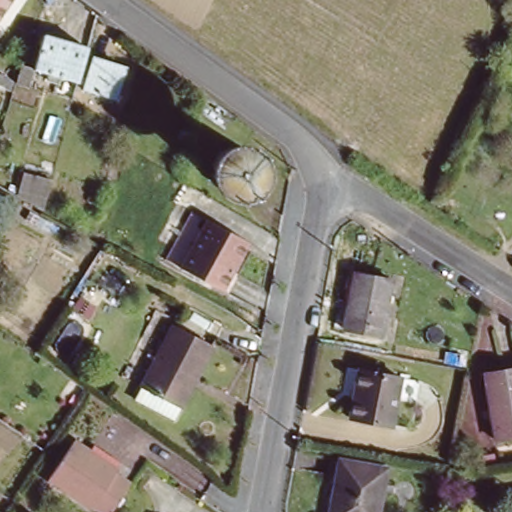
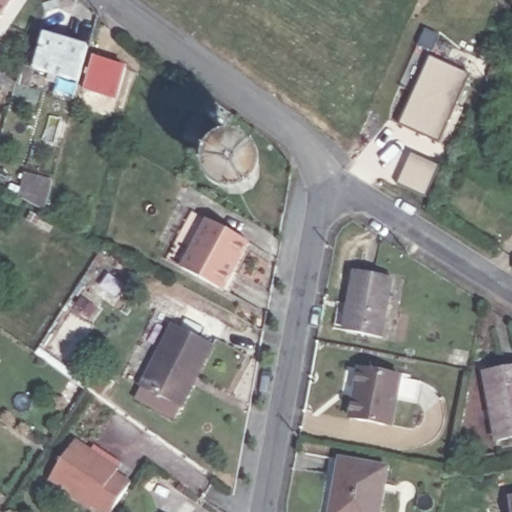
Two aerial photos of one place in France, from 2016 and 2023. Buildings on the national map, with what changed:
unchanged [(0,8),(0,0),(5,0),(0,8)]
unchanged [(41,36),(83,47),(74,79),(32,68),(41,36)]
unchanged [(89,54),(122,63),(111,103),(90,97),(93,89),(81,86),(89,54)]
new [(429,59),(469,77),(439,143),(399,125),(429,59)]
new [(426,199),(396,186),(409,154),(439,166),(426,199)]
unchanged [(20,173),(47,179),(40,207),(14,200),(20,173)]
unchanged [(229,272),(218,287),(179,259),(208,220),(241,245),(246,247),(229,272)]
unchanged [(346,273),(384,281),(374,333),(341,327),(346,305),(340,303),(346,273)]
unchanged [(173,413),(135,391),(174,320),(214,342),(196,373),(180,402),(173,413)]
unchanged [(353,370),(394,378),(385,426),(343,417),(353,370)]
unchanged [(512,370),(512,436),(500,438),(487,376),(512,370)]
unchanged [(118,468),(114,472),(128,482),(111,506),(107,512),(101,512),(92,506),(91,508),(47,479),(55,468),(74,440),(118,468)]
unchanged [(384,470),(377,512),(328,512),(337,461),(384,470)]
unchanged [(505,512),(502,495),(512,493),(512,512),(505,512)]

